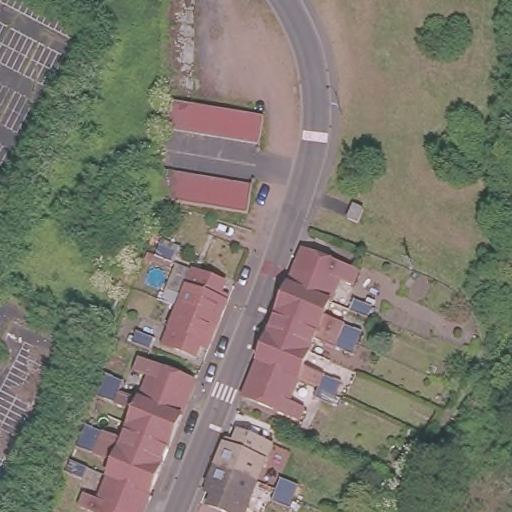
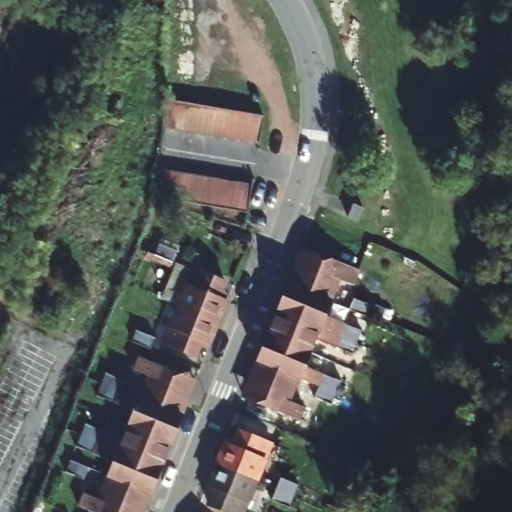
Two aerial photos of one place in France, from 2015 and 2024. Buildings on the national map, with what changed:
unchanged [(247,136),(219,131),(206,129),(196,127),(192,126),(178,124),(167,121),(167,109),(167,105),(167,93),(175,94),(183,96),(197,98),(210,101),(223,103),(237,106),(250,108),(262,111),(263,115),(262,127),(260,139),(247,136)]
unchanged [(222,204),(207,201),(193,199),(180,196),(165,193),(153,191),(155,179),(157,166),(157,163),(170,165),(185,168),(197,171),(210,174),(225,177),(227,177),(239,180),(250,182),(249,195),(247,209),(235,207),(222,204)]
unchanged [(177,253),(171,266),(152,259),(157,246),(177,253)]
unchanged [(282,283),(290,263),(299,267),(305,253),(355,273),(348,288),(335,283),(327,301),(282,283)]
unchanged [(126,290),(136,263),(140,254),(152,259),(137,294),(130,291),(126,290)]
unchanged [(217,324),(177,310),(186,288),(185,288),(192,270),(207,275),(207,277),(225,285),(219,301),(225,303),(217,324)]
unchanged [(319,319),(330,323),(331,321),(360,333),(353,346),(309,325),(271,309),(282,283),(327,301),(319,319)]
unchanged [(352,297),(370,305),(365,317),(347,309),(352,297)]
unchanged [(350,356),(320,344),(321,342),(311,338),(305,353),(260,335),(271,309),(309,325),(353,346),(350,356)]
unchanged [(217,324),(208,346),(201,343),(195,357),(175,350),(175,352),(162,346),(169,328),(170,328),(177,310),(217,324)]
unchanged [(130,345),(135,333),(154,341),(150,353),(130,345)]
unchanged [(311,398),(315,386),(295,378),(250,360),(260,335),(305,353),(298,369),(310,374),(310,372),(338,384),(333,395),(328,406),(311,398)]
unchanged [(179,418),(137,401),(147,376),(133,371),(138,358),(165,369),(164,370),(185,378),(177,395),(187,399),(179,418)]
unchanged [(250,360),(295,378),(286,401),(300,407),(295,421),(268,411),(270,407),(248,398),(254,384),(243,379),(250,360)]
unchanged [(431,376),(437,363),(460,373),(453,387),(451,386),(431,376)]
unchanged [(132,411),(122,408),(121,409),(95,398),(100,385),(103,376),(128,385),(123,395),(137,401),(179,418),(169,443),(127,426),(132,411)]
unchanged [(158,469),(79,437),(83,426),(111,436),(110,439),(120,442),(127,426),(169,443),(158,469)]
unchanged [(217,466),(227,444),(234,447),(241,431),(260,439),(260,438),(274,442),(266,460),(265,460),(257,482),(217,466)]
unchanged [(158,469),(148,494),(106,477),(112,462),(103,458),(102,460),(74,449),(79,437),(158,469)]
unchanged [(88,483),(64,473),(69,462),(93,472),(88,483)]
unchanged [(257,482),(250,497),(252,498),(246,512),(230,512),(231,512),(223,509),(213,505),(219,488),(210,485),(217,466),(257,482)]
unchanged [(267,496),(272,485),(277,472),(295,479),(290,492),(286,503),(267,496)]
unchanged [(137,512),(132,510),(130,512),(87,512),(77,508),(82,496),(96,502),(106,477),(148,494),(141,512),(137,512)]

